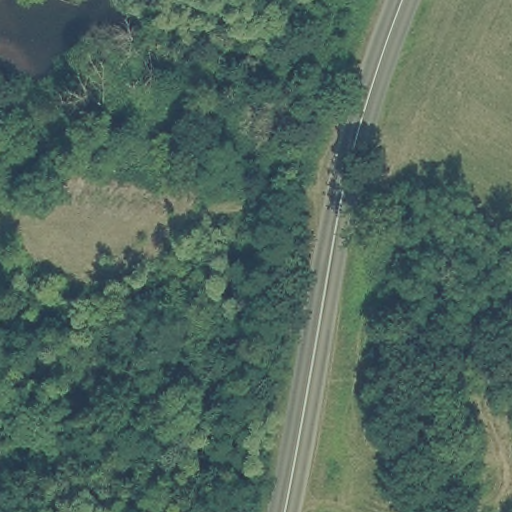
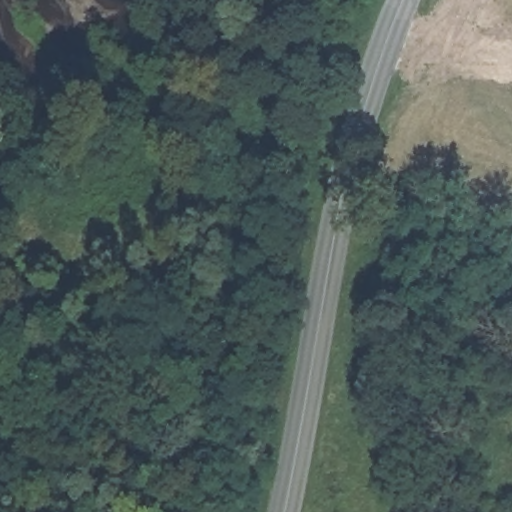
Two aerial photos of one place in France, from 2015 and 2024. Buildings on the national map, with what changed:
unchanged [(484,433),(512,419),(512,469),(506,472),(484,433)]

